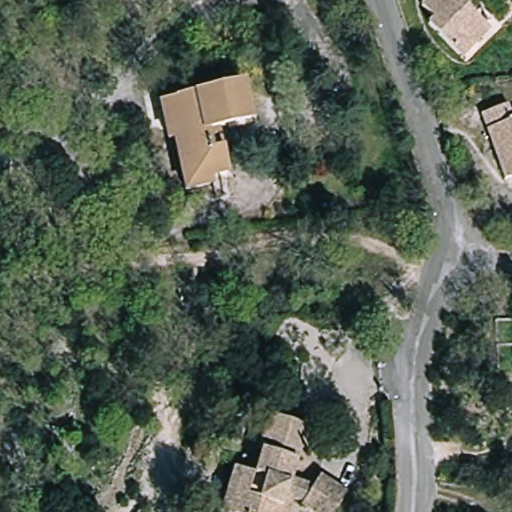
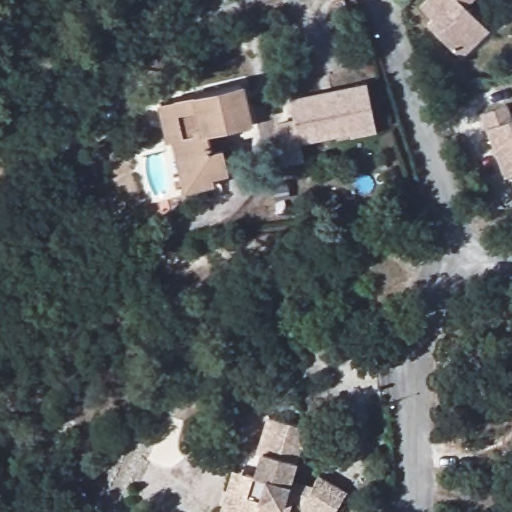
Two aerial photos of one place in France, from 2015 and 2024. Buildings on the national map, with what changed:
unchanged [(464,60),(431,27),(437,21),(424,9),(433,0),(477,0),(467,9),(477,18),(492,33),(482,43),(464,60)]
unchanged [(227,174),(219,175),(221,185),(193,190),(177,111),(175,102),(187,99),(245,87),(251,118),(228,123),(229,129),(219,131),(222,149),(227,174)]
new [(298,124),(294,104),(370,88),(380,134),(354,139),(354,135),(304,146),(307,164),(289,168),(281,128),(298,124)]
unchanged [(193,190),(182,193),(171,139),(164,140),(162,129),(157,105),(175,102),(177,111),(193,190)]
unchanged [(507,183),(480,119),(504,109),(510,123),(512,121),(512,180),(507,183)]
unchanged [(334,512),(303,512),(300,508),(285,497),(275,512),(222,512),(230,501),(213,488),(238,451),(255,462),(269,440),(262,435),(282,406),(326,436),(313,457),(305,452),(290,475),(310,489),(319,479),(341,506),(334,512)]

